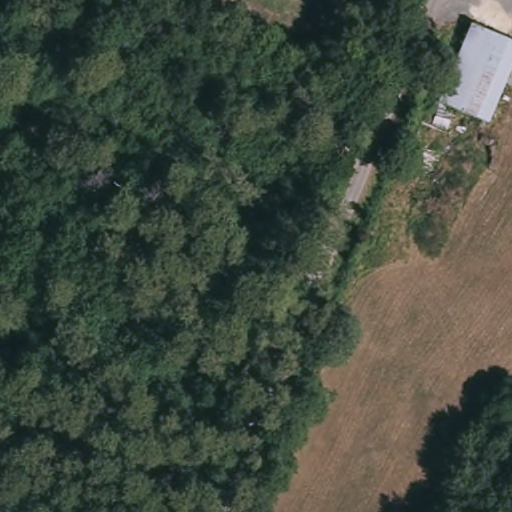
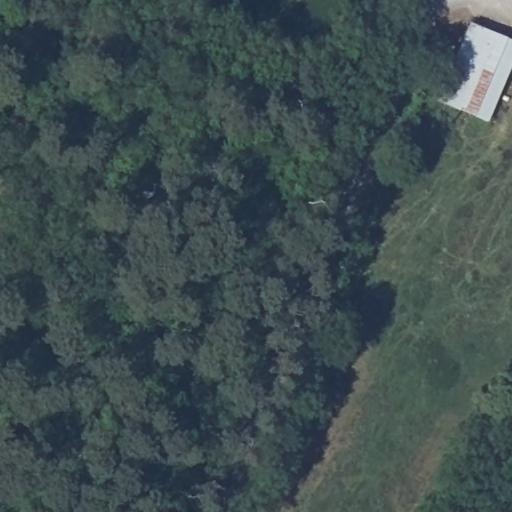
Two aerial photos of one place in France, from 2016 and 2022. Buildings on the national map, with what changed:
unchanged [(512,40),(512,52),(483,119),(447,105),(480,27),(512,40)]

